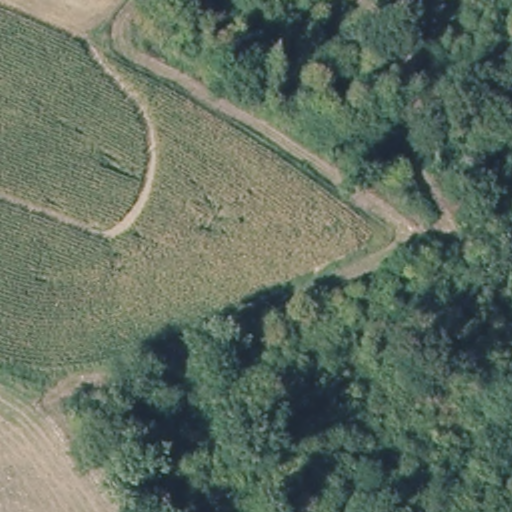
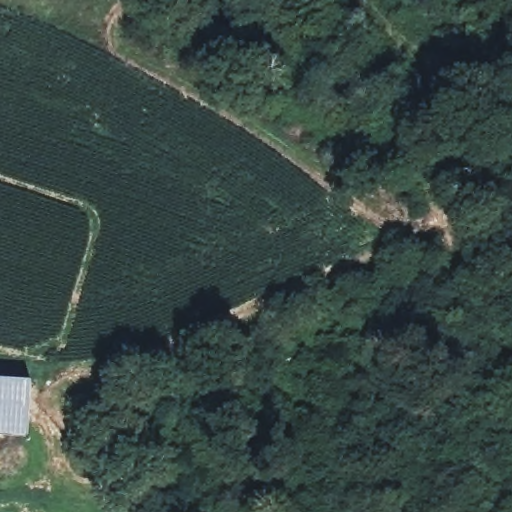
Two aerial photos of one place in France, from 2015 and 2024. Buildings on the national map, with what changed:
new [(33,385),(30,442),(0,439),(0,382),(33,385)]

